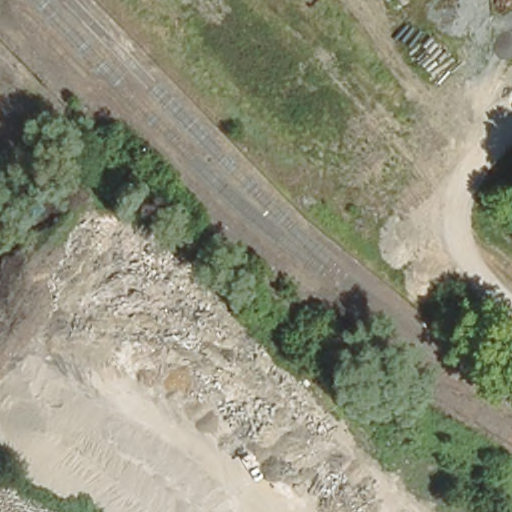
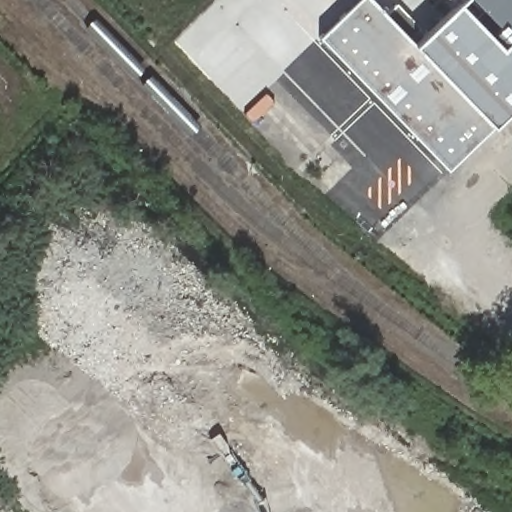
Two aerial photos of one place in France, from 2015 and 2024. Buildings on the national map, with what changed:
new [(397,3),(413,20),(410,38),(415,44),(455,8),(459,4),(499,45),(508,37),(512,41),(512,105),(491,125),(447,169),(320,37),(359,0),(372,0),(387,14),(397,3)]
new [(474,0),(512,0),(512,40),(474,0)]
demolished [(126,369),(152,342),(179,371),(151,396),(126,369)]
demolished [(180,512),(126,512),(112,501),(136,472),(182,511),(180,512)]

